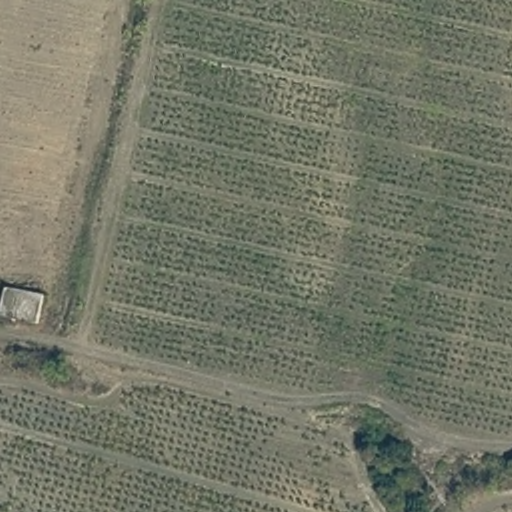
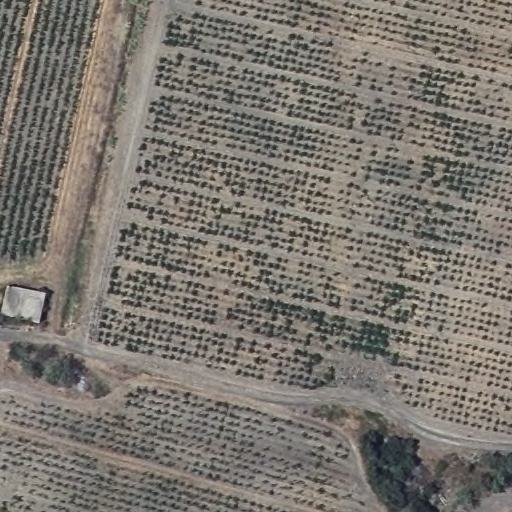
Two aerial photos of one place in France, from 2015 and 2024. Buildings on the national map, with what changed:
unchanged [(48,293),(40,318),(3,308),(10,281),(48,293)]

